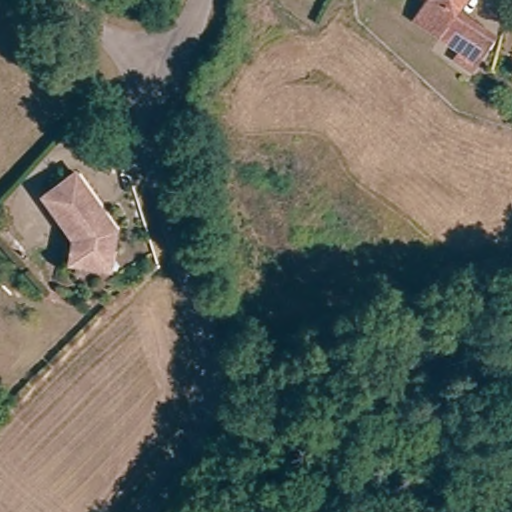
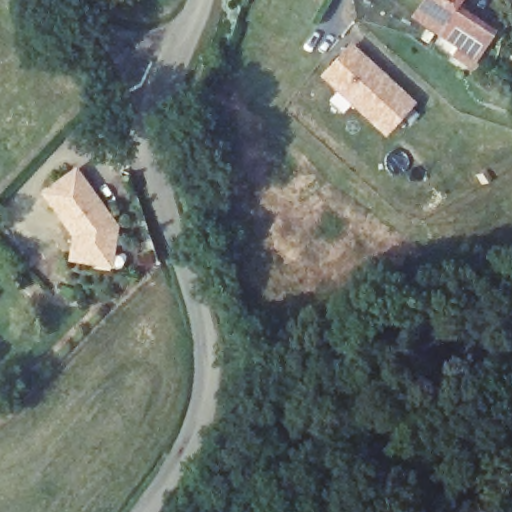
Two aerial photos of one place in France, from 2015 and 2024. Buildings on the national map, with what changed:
unchanged [(454,55),(460,47),(415,14),(422,0),(462,0),(454,13),(492,39),(476,58),(474,57),(468,65),(454,55)]
new [(319,77),(352,44),(416,103),(384,138),(319,77)]
unchanged [(71,255),(72,248),(75,233),(44,192),(76,169),(95,195),(104,207),(116,223),(113,245),(110,261),(71,255)]

